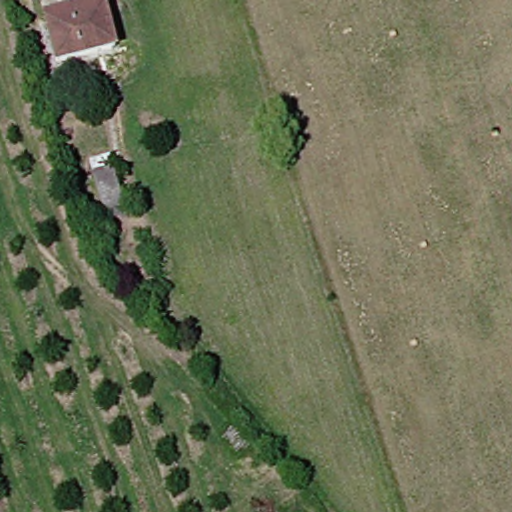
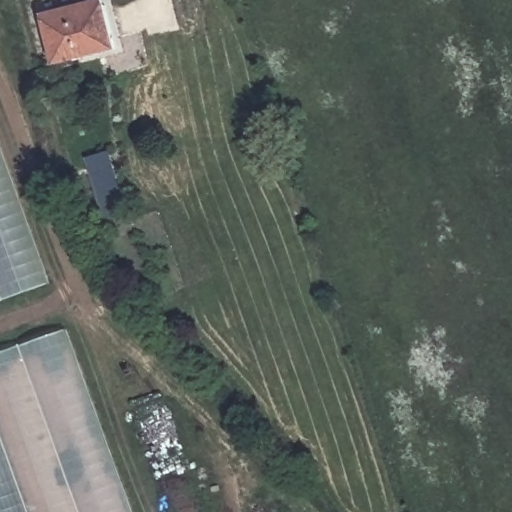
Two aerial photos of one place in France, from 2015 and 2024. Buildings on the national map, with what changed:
unchanged [(52,64),(41,25),(40,19),(95,4),(97,10),(108,50),(52,64)]
new [(106,221),(89,160),(109,154),(129,213),(106,221)]
new [(0,300),(0,162),(43,284),(0,300)]
new [(0,512),(0,351),(60,329),(126,512),(0,512)]

